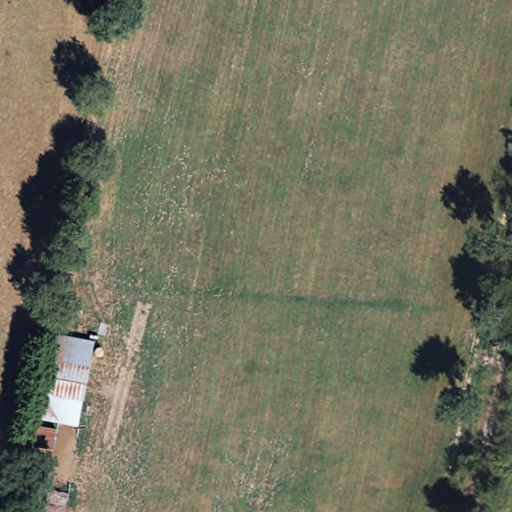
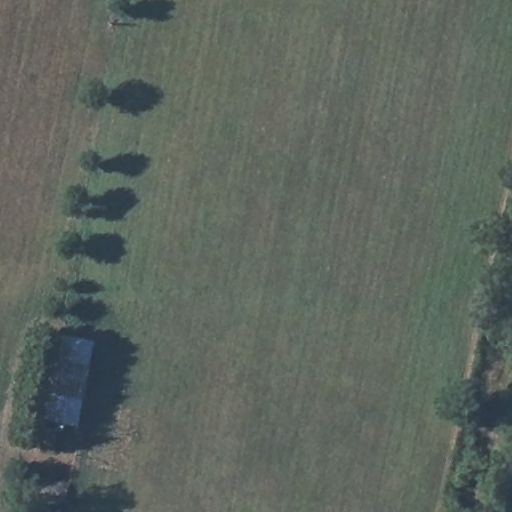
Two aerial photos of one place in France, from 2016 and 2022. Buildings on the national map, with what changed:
unchanged [(41,422),(52,334),(101,340),(89,430),(41,422)]

